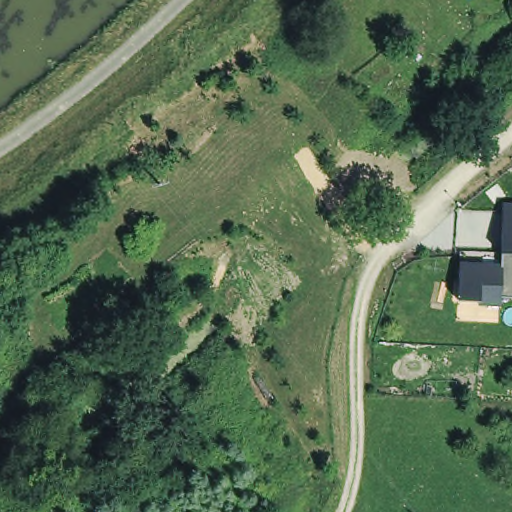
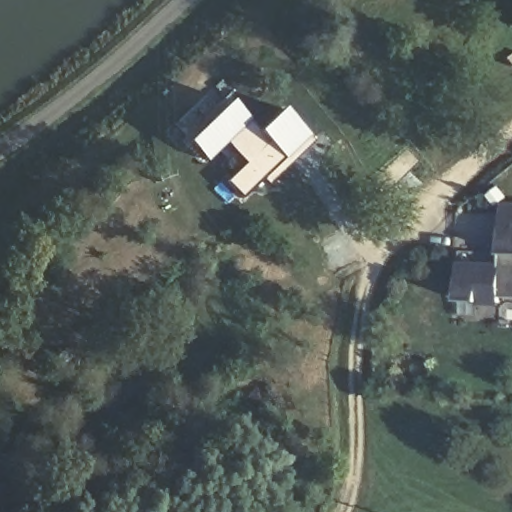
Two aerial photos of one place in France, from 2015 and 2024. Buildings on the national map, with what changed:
new [(259,131),(284,107),(315,141),(269,184),(264,179),(244,198),(228,181),(245,163),(226,143),(207,160),(190,142),(233,98),(259,131)]
unchanged [(500,293),(499,302),(458,301),(459,263),(500,264),(501,202),(512,202),(512,293),(500,293)]

